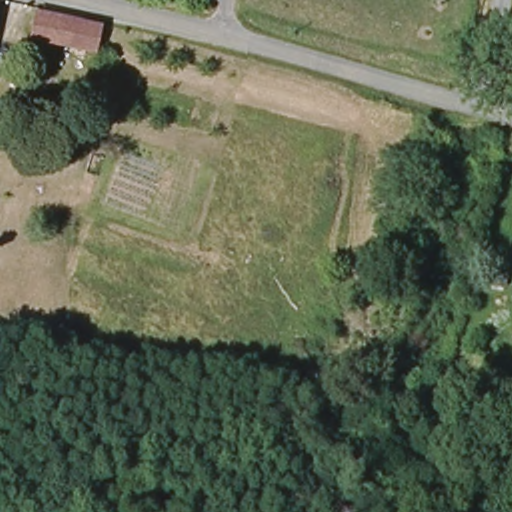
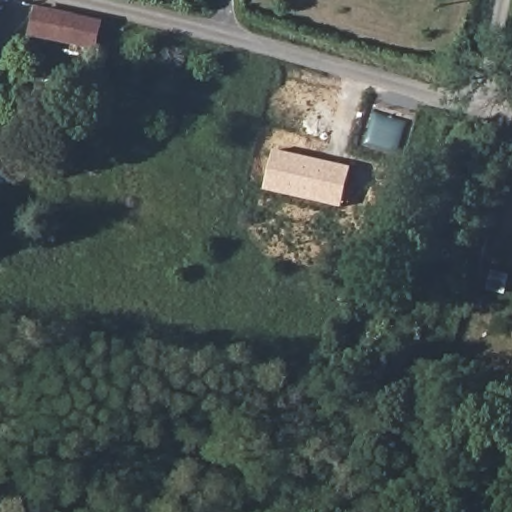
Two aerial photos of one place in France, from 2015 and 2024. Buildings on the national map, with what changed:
unchanged [(31,39),(35,14),(104,23),(99,51),(31,39)]
new [(264,191),(274,150),(352,167),(342,208),(264,191)]

